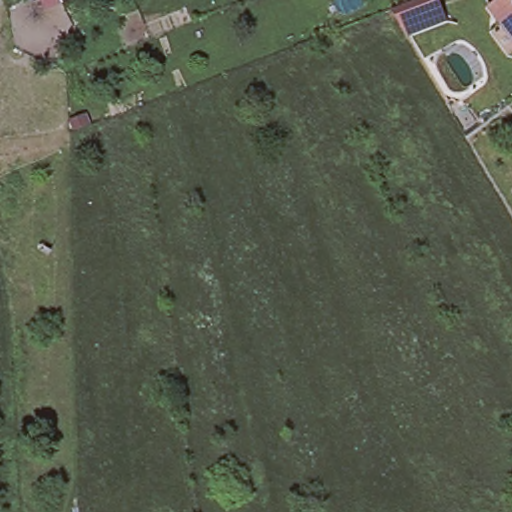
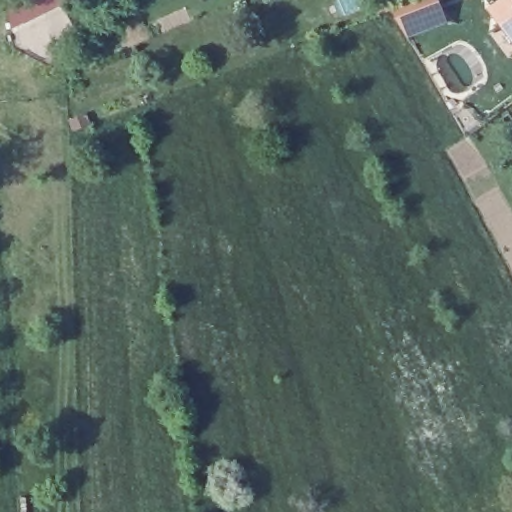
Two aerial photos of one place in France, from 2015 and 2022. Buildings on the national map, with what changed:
unchanged [(492,5),(499,0),(512,0),(512,33),(492,5)]

